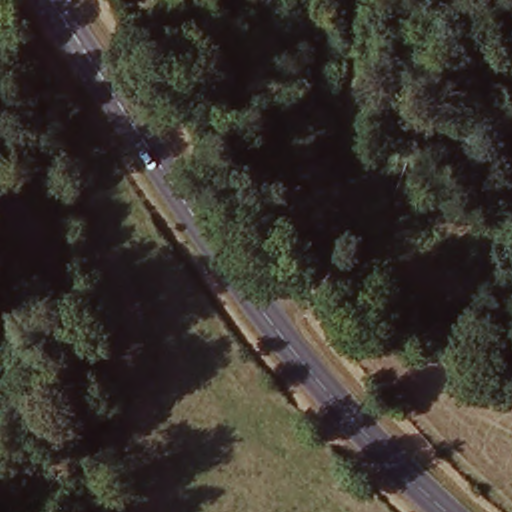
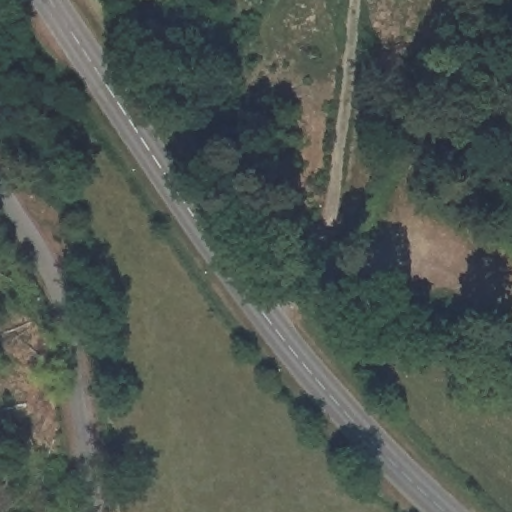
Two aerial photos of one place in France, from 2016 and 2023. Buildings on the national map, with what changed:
[]

